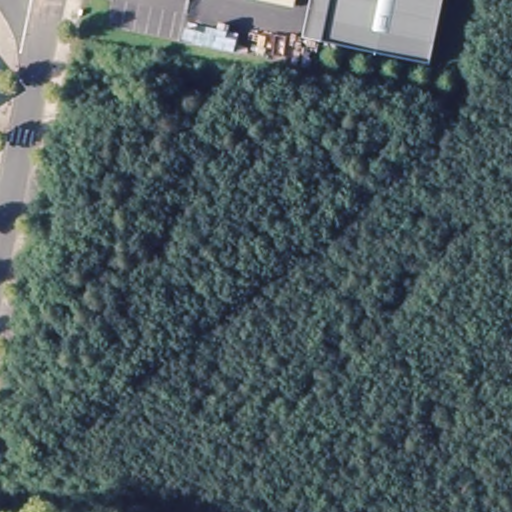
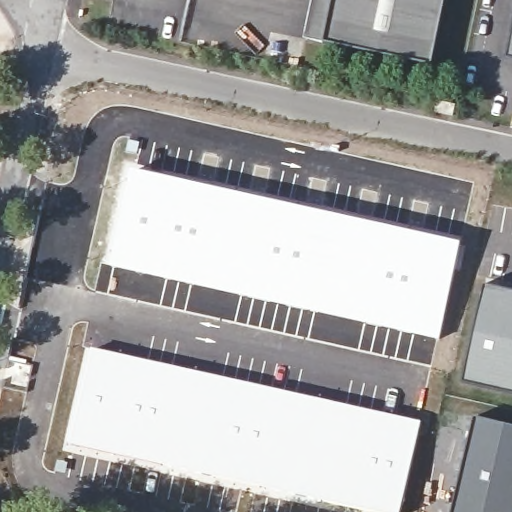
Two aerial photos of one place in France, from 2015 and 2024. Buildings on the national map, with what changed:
unchanged [(318,39),(326,0),(439,0),(427,61),(318,39)]
new [(506,58),(512,31),(512,59),(506,58)]
new [(438,100),(458,104),(455,115),(436,110),(438,100)]
new [(118,199),(129,168),(462,242),(440,340),(143,273),(103,263),(118,199)]
new [(463,385),(486,285),(512,291),(512,395),(463,385)]
new [(85,346),(422,421),(401,512),(368,512),(308,499),(277,494),(131,459),(63,445),(85,346)]
new [(476,416),(512,424),(512,512),(453,512),(476,416)]

